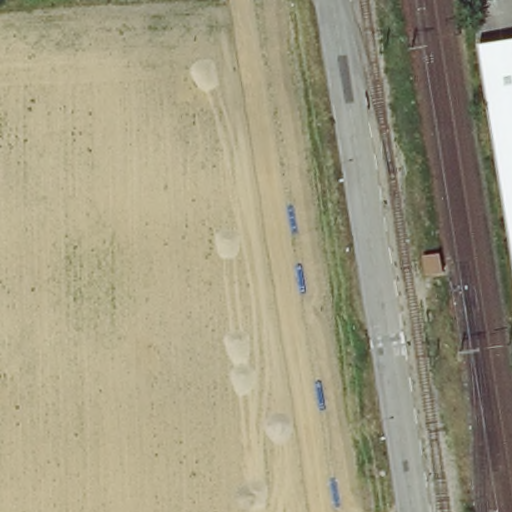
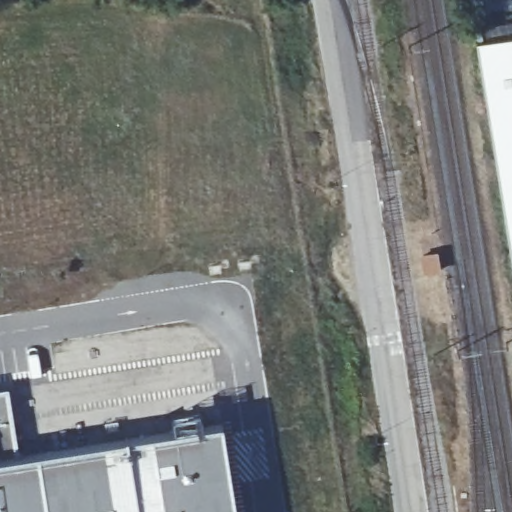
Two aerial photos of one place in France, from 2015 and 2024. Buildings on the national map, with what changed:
unchanged [(512,40),(512,302),(492,176),(479,92),(472,47),(512,40)]
unchanged [(445,251),(449,273),(431,275),(428,253),(445,251)]
new [(6,392),(10,460),(176,433),(174,419),(201,416),(202,430),(222,427),(235,512),(0,512),(0,393),(6,392)]

